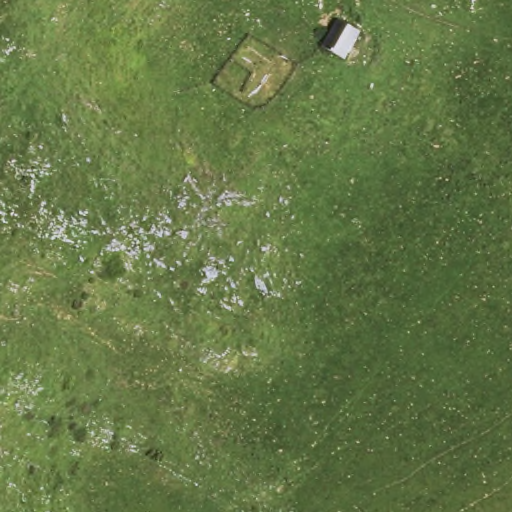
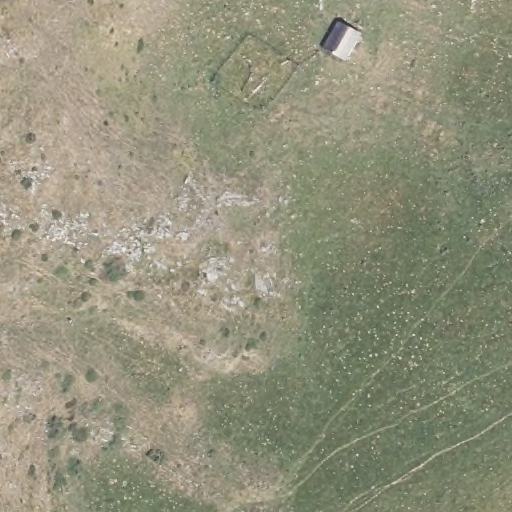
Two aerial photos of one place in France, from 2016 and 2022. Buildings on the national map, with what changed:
unchanged [(343,22),(369,37),(360,51),(350,69),(324,54),(343,22)]

